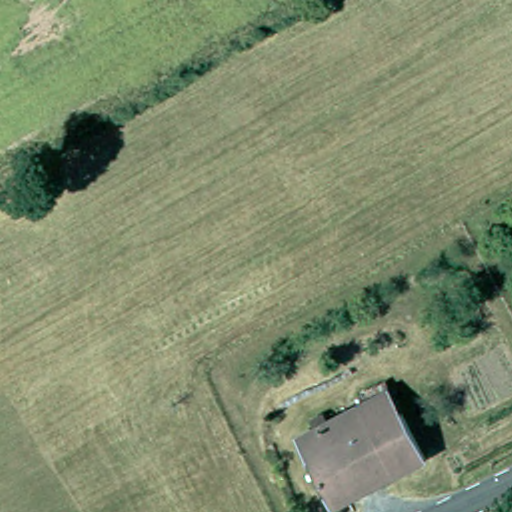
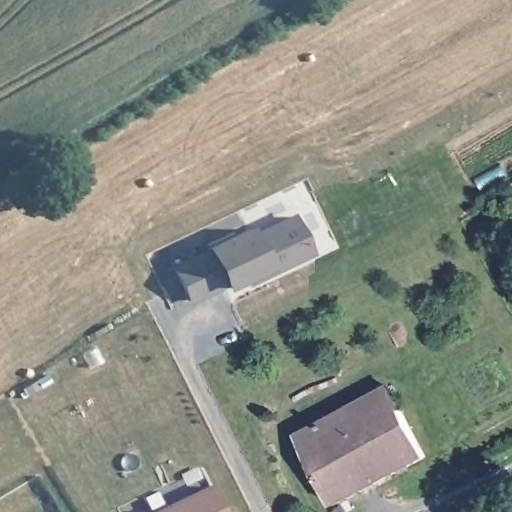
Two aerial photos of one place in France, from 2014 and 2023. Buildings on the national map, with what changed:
unchanged [(500,231),(495,224),(512,214),(512,230),(502,236),(500,231)]
new [(205,249),(252,227),(254,232),(294,215),(313,255),(247,286),(245,281),(225,290),(189,305),(171,265),(205,249)]
unchanged [(337,505),(299,438),(320,426),(315,419),(325,413),(330,421),(362,404),(393,387),(406,409),(432,454),(337,505)]
new [(224,512),(151,512),(210,483),(224,512)]

